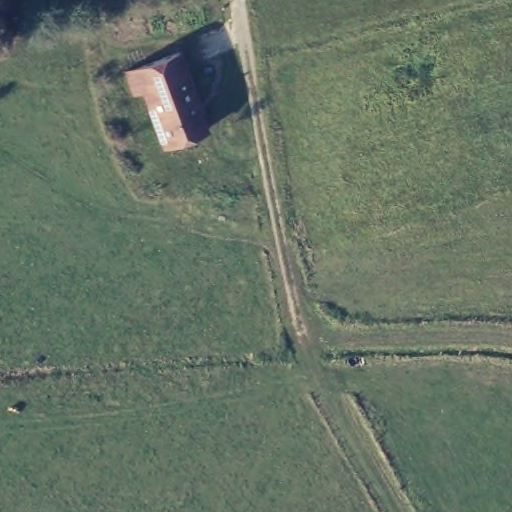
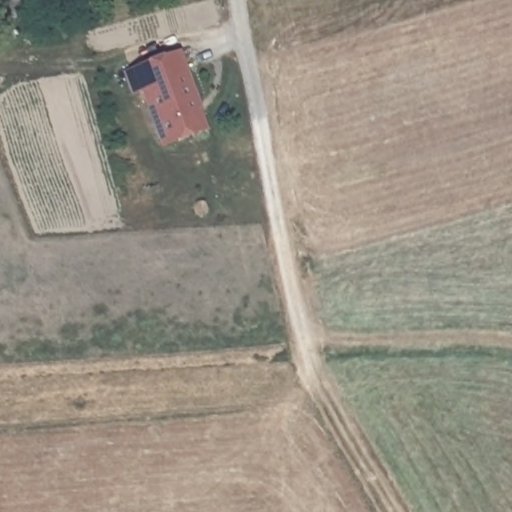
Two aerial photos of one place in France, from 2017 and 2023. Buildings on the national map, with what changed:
unchanged [(182,52),(191,76),(186,77),(206,129),(166,145),(143,87),(133,91),(126,73),(182,52)]

